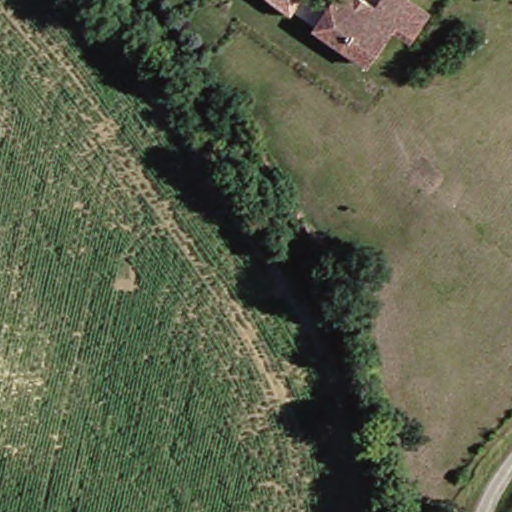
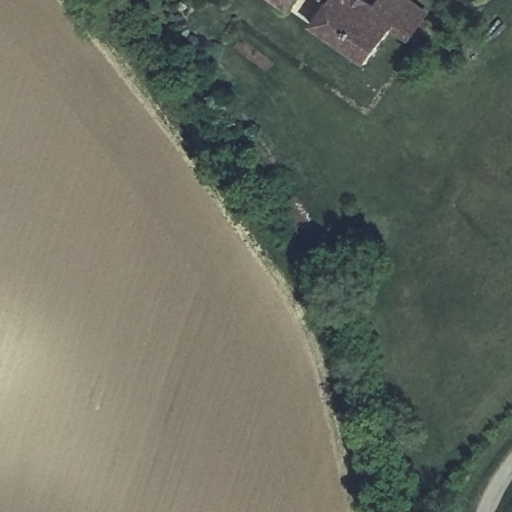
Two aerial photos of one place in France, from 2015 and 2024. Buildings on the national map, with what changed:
unchanged [(296,0),(292,7),(279,0),(296,0)]
unchanged [(380,0),(413,0),(426,7),(413,30),(397,20),(372,62),(314,27),(331,0),(369,0),(377,5),(380,0)]

